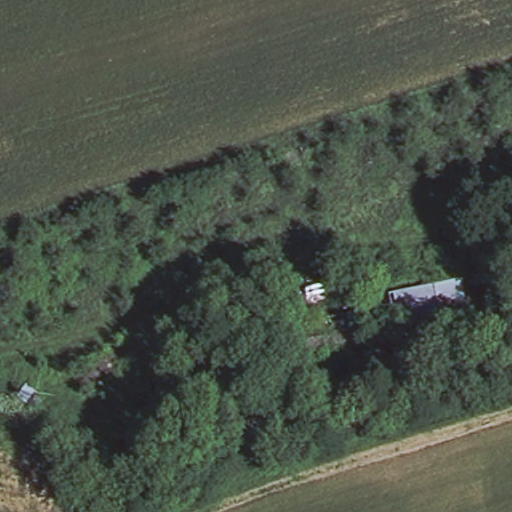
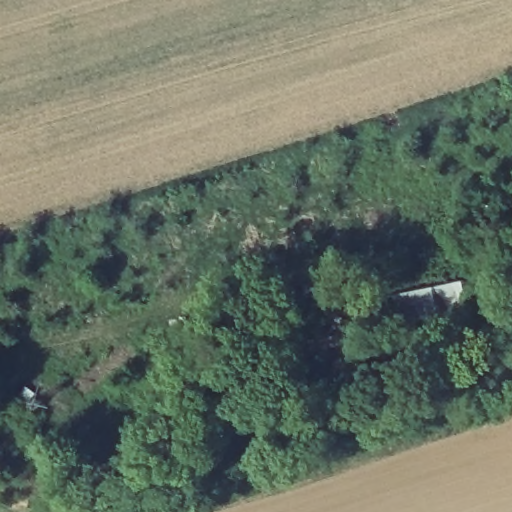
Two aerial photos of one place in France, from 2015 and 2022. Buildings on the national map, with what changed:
unchanged [(472,307),(302,349),(297,324),(392,306),(389,294),(464,279),(472,307)]

